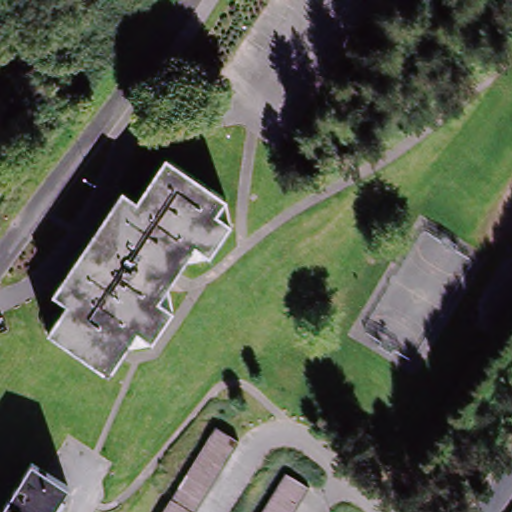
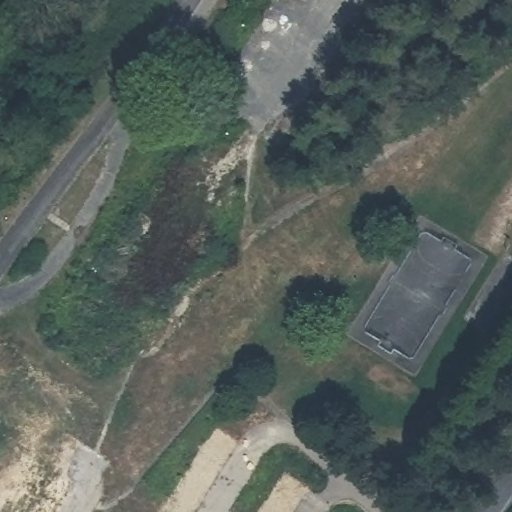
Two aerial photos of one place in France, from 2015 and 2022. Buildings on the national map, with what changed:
demolished [(65,306),(50,297),(91,236),(98,241),(106,229),(98,225),(120,194),(135,204),(162,161),(223,199),(213,215),(227,224),(205,255),(192,246),(155,300),(170,309),(149,340),(135,332),(106,375),(45,336),(65,306)]
unchanged [(165,505),(180,485),(195,460),(210,435),(213,432),(235,448),(232,453),(217,477),(202,501),(195,512),(161,512),(165,505)]
unchanged [(43,471),(59,481),(66,485),(50,512),(0,512),(0,511),(30,463),(43,471)]
unchanged [(285,471),(308,487),(302,497),(293,512),(259,512),(263,505),(280,480),(285,471)]

